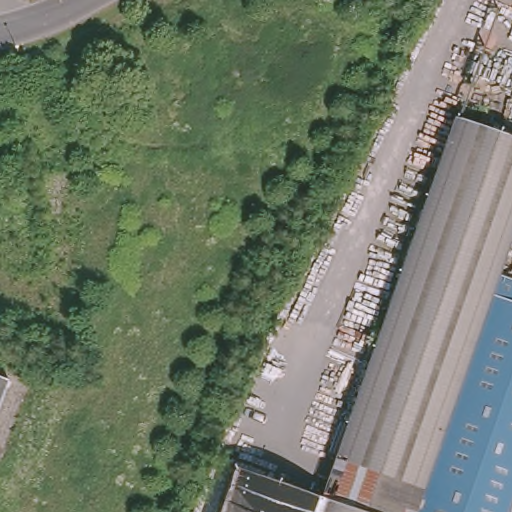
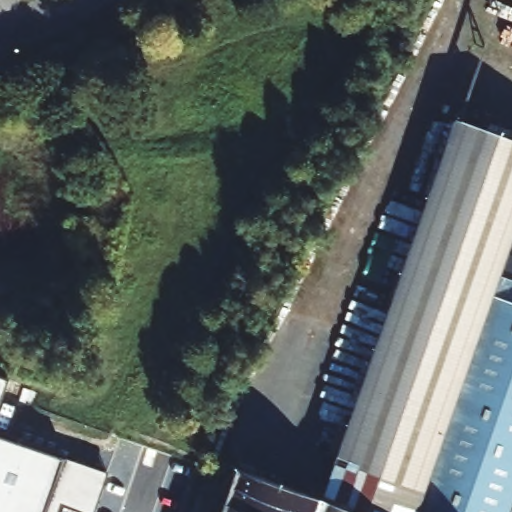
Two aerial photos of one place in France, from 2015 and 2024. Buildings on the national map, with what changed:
unchanged [(326,499),(342,450),(351,424),(456,121),(512,139),(512,242),(499,276),(512,280),(512,507),(510,512),(223,512),(238,469),(326,499)]
unchanged [(0,410),(0,369),(13,373),(0,410)]
new [(108,472),(94,512),(87,512),(61,503),(58,512),(0,512),(0,436),(63,457),(108,472)]

